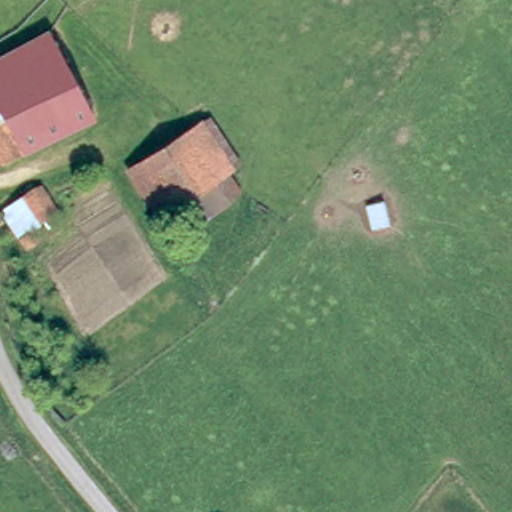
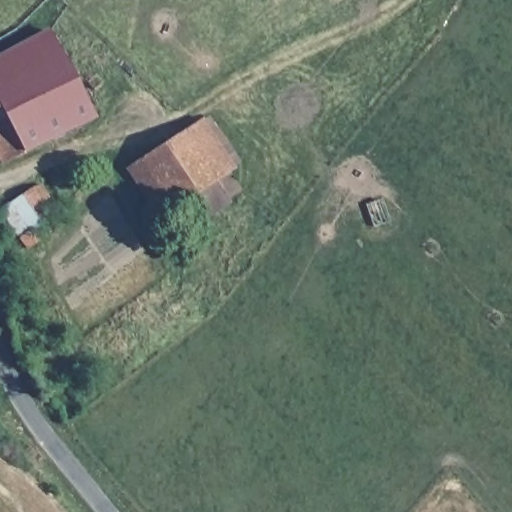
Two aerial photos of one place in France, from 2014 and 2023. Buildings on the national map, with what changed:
unchanged [(0,57),(48,36),(90,118),(20,153),(0,113),(0,57)]
unchanged [(1,163),(0,160),(0,113),(20,153),(1,163)]
unchanged [(237,167),(161,215),(131,167),(206,119),(237,167)]
unchanged [(2,212),(30,190),(50,217),(21,237),(2,212)]

